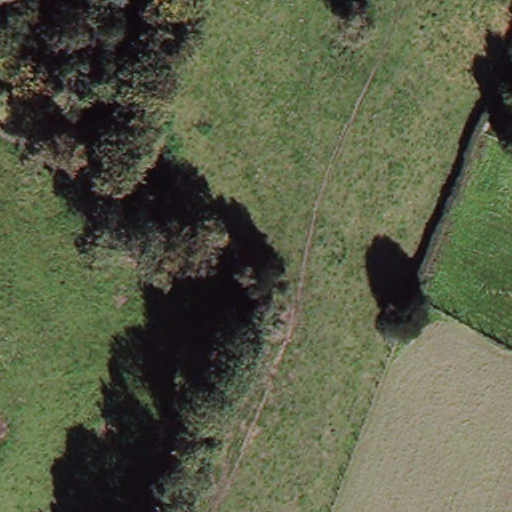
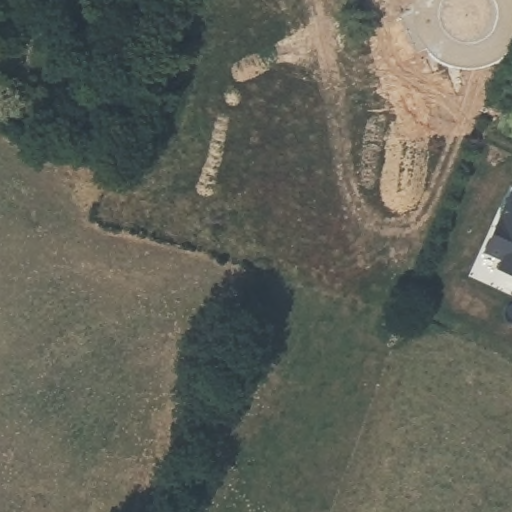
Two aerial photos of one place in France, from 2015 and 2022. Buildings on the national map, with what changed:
new [(501,265),(505,256),(487,248),(512,194),(512,270),(501,265)]

